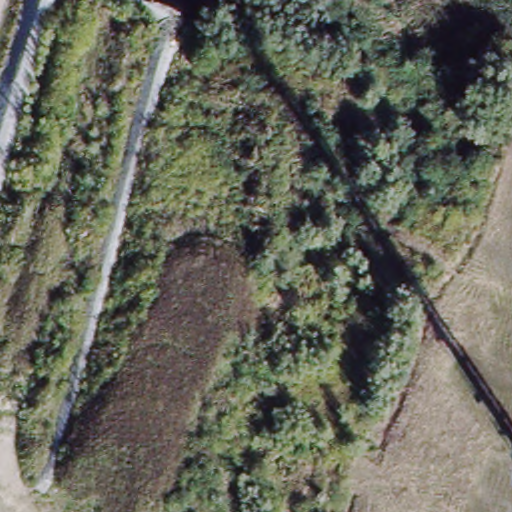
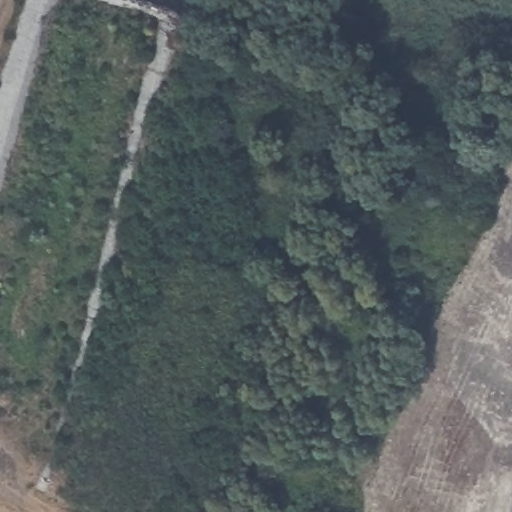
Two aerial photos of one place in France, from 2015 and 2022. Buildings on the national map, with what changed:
[]

